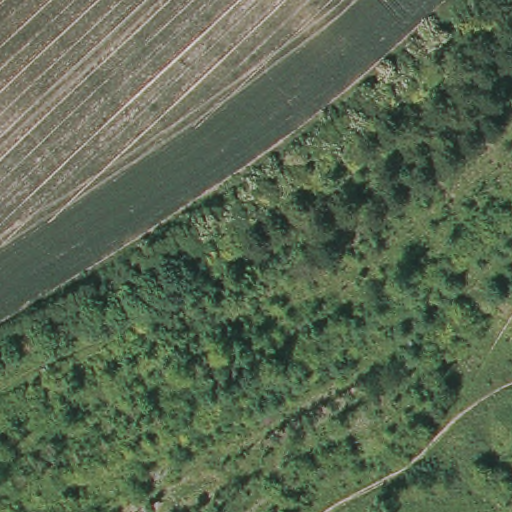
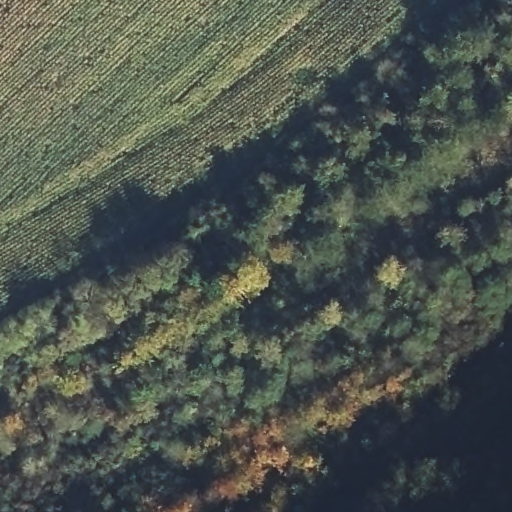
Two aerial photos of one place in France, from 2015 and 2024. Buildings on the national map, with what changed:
unchanged [(188,266),(230,236),(241,252),(205,284),(188,266)]

